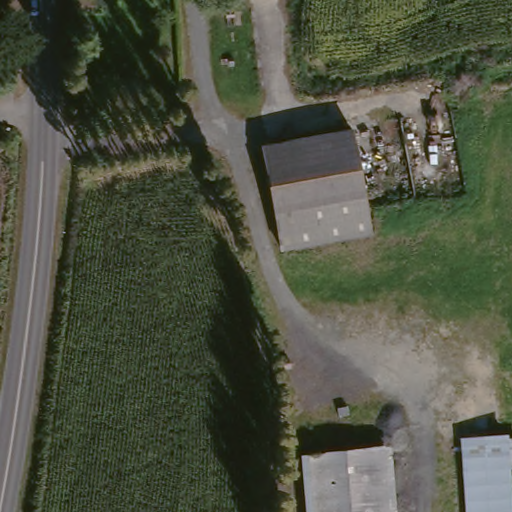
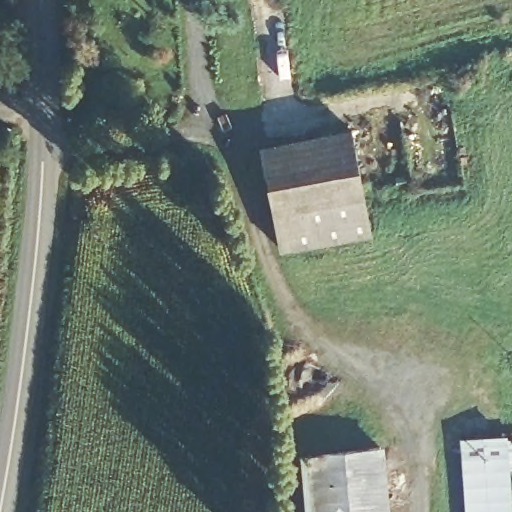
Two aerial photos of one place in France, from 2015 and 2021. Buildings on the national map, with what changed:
unchanged [(358,125),(377,228),(286,246),(266,143),(358,125)]
unchanged [(512,512),(475,512),(468,435),(512,431),(512,512)]
unchanged [(387,445),(393,512),(319,512),(314,454),(387,445)]

